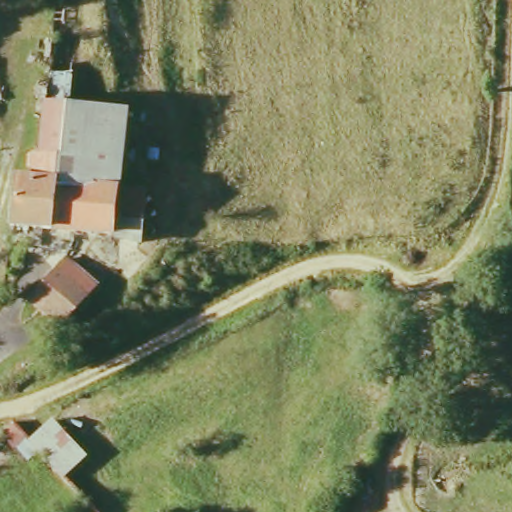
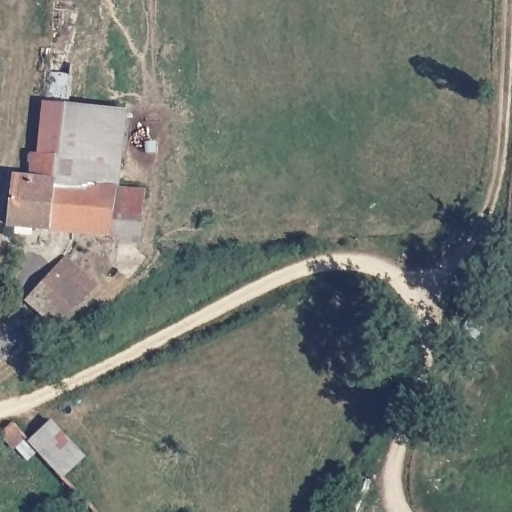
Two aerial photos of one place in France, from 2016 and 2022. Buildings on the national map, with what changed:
unchanged [(12,176),(27,177),(30,154),(44,154),(49,74),(69,74),(68,104),(66,155),(123,159),(120,187),(144,191),(139,239),(8,226),(12,176)]
unchanged [(66,155),(68,104),(128,110),(123,159),(66,155)]
unchanged [(62,327),(28,298),(64,256),(97,285),(62,327)]
unchanged [(63,482),(27,442),(13,455),(0,439),(0,435),(14,423),(29,440),(54,421),(89,458),(63,482)]

